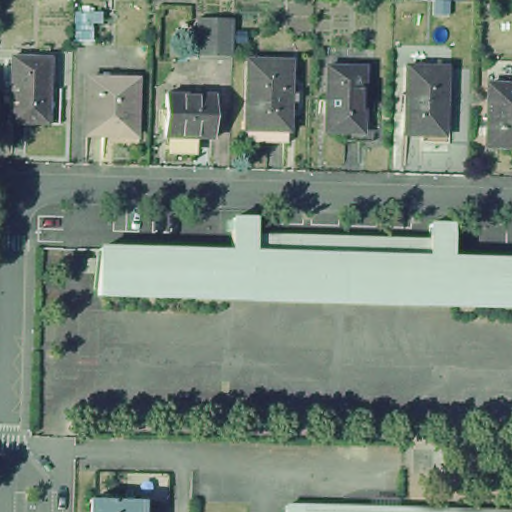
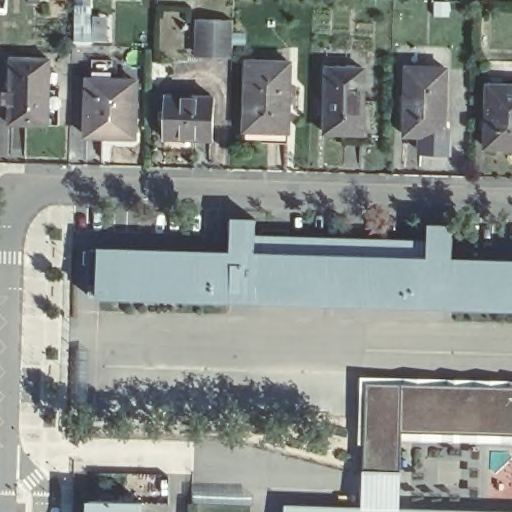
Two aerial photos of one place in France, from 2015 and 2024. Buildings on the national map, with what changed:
unchanged [(91,13),(90,42),(73,42),(73,12),(91,13)]
unchanged [(196,55),(196,19),(232,20),(231,50),(231,55),(196,55)]
unchanged [(238,138),(238,126),(240,56),(283,57),(282,90),(289,90),(289,99),(282,99),(281,127),(281,139),(238,138)]
unchanged [(5,59),(43,60),(41,124),(3,123),(3,100),(0,99),(0,90),(4,90),(5,59)]
unchanged [(445,64),(443,131),(403,130),(406,63),(445,64)]
unchanged [(313,101),(319,101),(319,67),(358,68),(356,134),(318,134),(319,109),(313,109),(313,101)]
unchanged [(133,80),(130,137),(78,135),(81,79),(133,80)]
unchanged [(512,86),(512,149),(479,148),(482,85),(512,86)]
unchanged [(153,126),(153,115),(161,115),(161,100),(207,101),(205,144),(159,142),(160,126),(153,126)]
unchanged [(94,300),(93,255),(93,254),(226,258),(227,224),(251,225),(250,242),(424,246),(424,230),(446,230),(445,265),(512,267),(512,313),(94,300)]
new [(401,433),(397,508),(361,506),(366,383),(512,388),(512,436),(401,433)]
unchanged [(138,507),(138,508),(136,508),(136,512),(86,512),(86,507),(85,507),(85,505),(138,507)]
unchanged [(288,511),(288,512),(286,512),(286,511),(288,511)]

